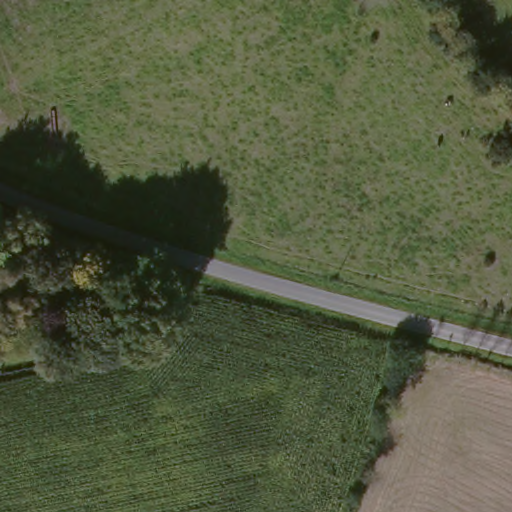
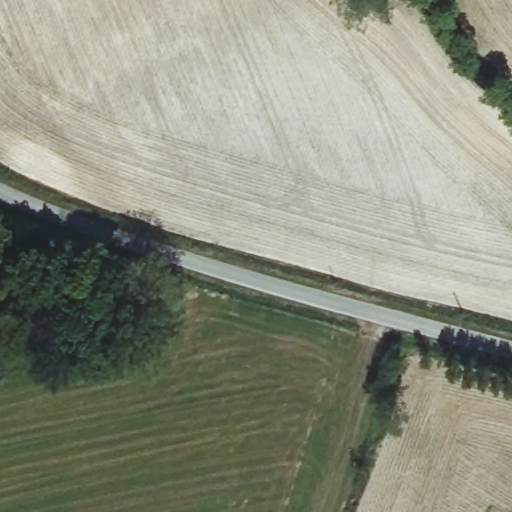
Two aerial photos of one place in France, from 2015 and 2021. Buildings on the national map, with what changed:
[]

